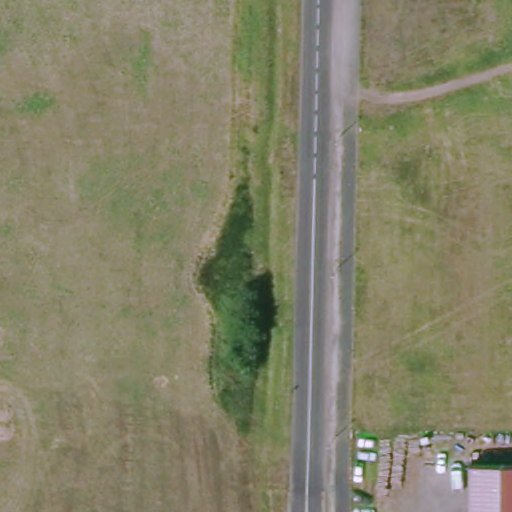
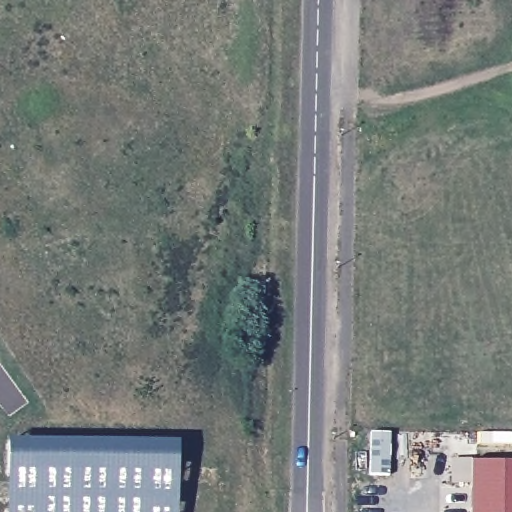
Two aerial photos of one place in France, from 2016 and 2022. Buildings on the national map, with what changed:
new [(179,512),(11,512),(10,440),(179,441),(179,512)]
unchanged [(512,512),(471,512),(471,467),(512,467),(512,512)]

